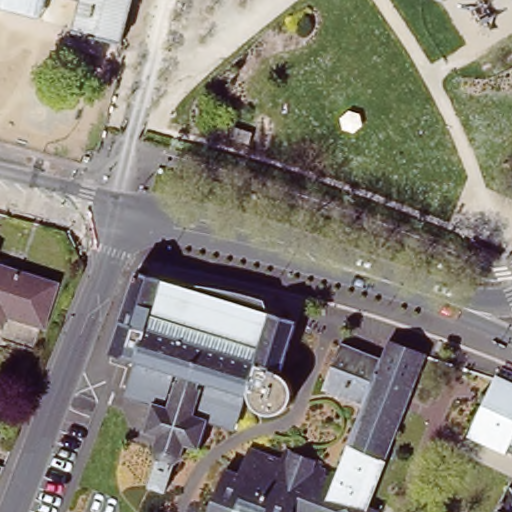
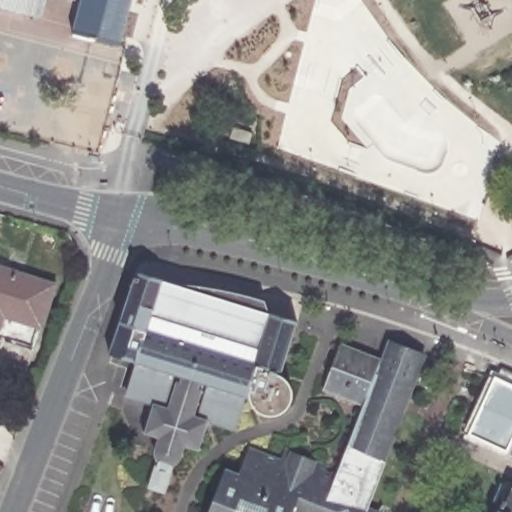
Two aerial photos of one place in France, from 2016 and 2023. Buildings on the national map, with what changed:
unchanged [(0,10),(0,0),(47,0),(42,20),(0,10)]
unchanged [(62,4),(63,0),(79,0),(77,8),(62,4)]
unchanged [(84,0),(134,0),(122,46),(75,34),(84,0)]
unchanged [(40,334),(2,321),(0,326),(0,271),(55,290),(40,334)]
unchanged [(137,271),(164,279),(270,313),(297,322),(283,375),(287,376),(287,377),(288,377),(289,378),(289,379),(290,379),(290,380),(290,381),(291,381),(291,382),(292,382),(292,383),(292,384),(292,385),(293,386),(293,387),(293,388),(294,388),(294,389),(294,390),(294,392),(294,393),(294,394),(294,395),(293,395),(293,396),(293,397),(293,398),(292,398),(292,399),(292,400),(292,401),(291,401),(291,402),(290,403),(290,404),(290,405),(289,405),(289,406),(288,406),(287,406),(287,407),(287,408),(286,408),(285,408),(285,409),(284,409),(284,410),(283,410),(282,410),(282,411),(281,411),(280,411),(280,412),(279,412),(278,412),(277,412),(277,413),(276,413),(275,413),(274,413),(273,413),(272,413),(270,413),(269,413),(268,413),(267,413),(267,412),(266,412),(265,412),(264,412),(263,411),(262,411),(261,410),(260,410),(260,409),(259,409),(259,408),(258,408),(257,408),(257,407),(257,406),(256,406),(255,406),(255,405),(255,404),(254,404),(254,403),(254,402),(253,402),(253,401),(252,401),(252,400),(252,399),(252,398),(247,397),(242,411),(237,429),(214,423),(211,422),(197,416),(205,388),(174,379),(165,408),(154,404),(127,395),(137,361),(111,353),(136,271),(137,271)]
unchanged [(425,349),(364,512),(324,512),(329,498),(336,480),(355,429),(363,408),(380,365),(390,338),(425,349)]
unchanged [(338,350),(380,365),(363,408),(322,393),(338,350)]
unchanged [(144,428),(145,428),(146,428),(147,423),(146,423),(145,421),(145,420),(146,419),(149,419),(154,404),(165,408),(174,379),(205,388),(197,416),(211,422),(210,428),(212,429),(211,431),(209,430),(207,437),(209,438),(208,441),(205,440),(204,446),(205,447),(205,450),(187,444),(185,452),(187,453),(186,456),(184,456),(180,460),(177,464),(177,466),(177,467),(175,467),(174,467),(174,466),(166,491),(150,486),(158,463),(156,461),(155,460),(157,459),(158,459),(157,454),(157,450),(157,448),(155,447),(155,446),(157,445),(158,445),(159,441),(161,437),(162,435),(143,430),(143,429),(144,428)]
unchanged [(512,389),(512,448),(510,447),(506,457),(470,440),(497,382),(512,389)]
unchanged [(225,473),(237,477),(247,451),(263,457),(242,512),(210,512),(225,473)]
unchanged [(263,457),(279,462),(282,452),(320,467),(318,473),(336,480),(329,498),(324,512),(242,512),(263,457)]
unchanged [(510,490),(512,491),(512,512),(500,512),(510,490)]

